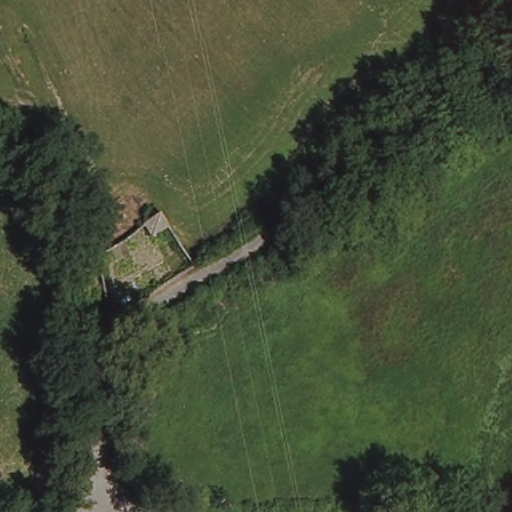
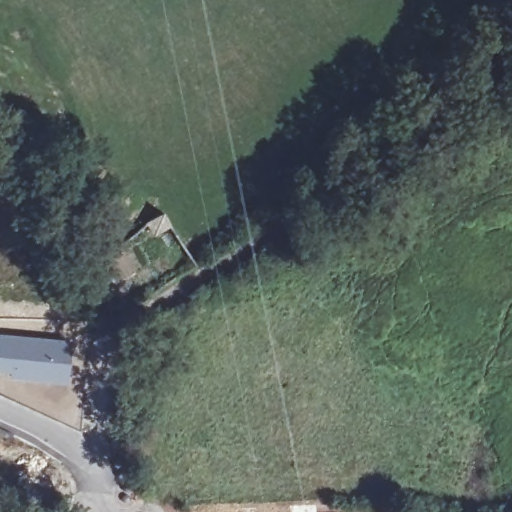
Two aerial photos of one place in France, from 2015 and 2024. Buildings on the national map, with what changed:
unchanged [(153,234),(145,222),(162,210),(170,222),(153,234)]
new [(70,339),(65,383),(9,376),(9,374),(0,373),(0,333),(70,339)]
unchanged [(162,356),(153,384),(136,380),(145,351),(162,356)]

